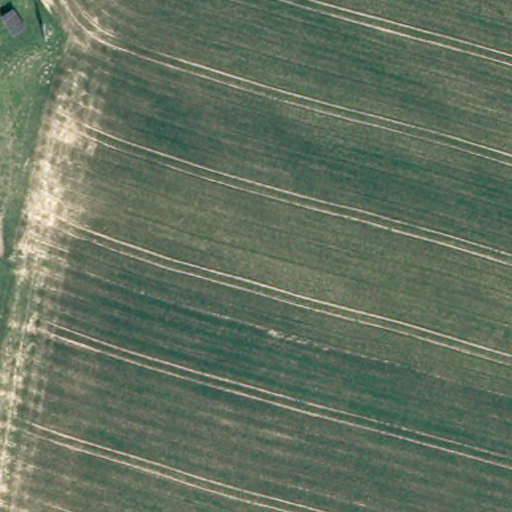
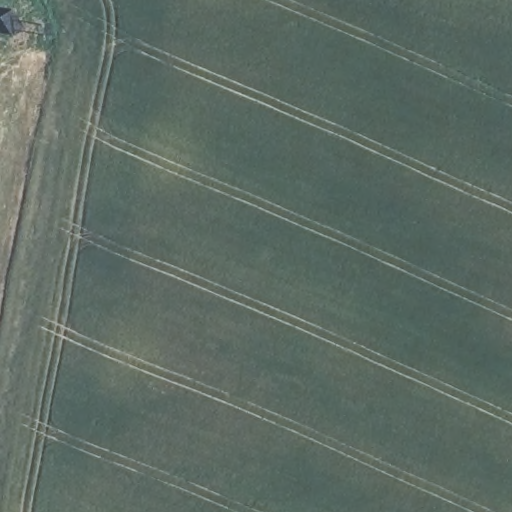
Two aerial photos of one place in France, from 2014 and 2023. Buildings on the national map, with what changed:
unchanged [(3,16),(14,8),(27,27),(15,35),(3,16)]

